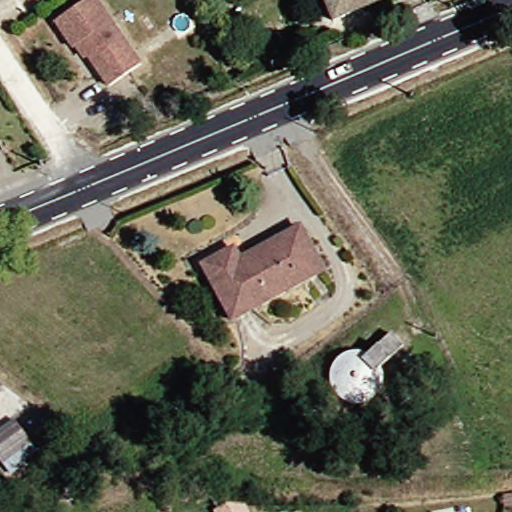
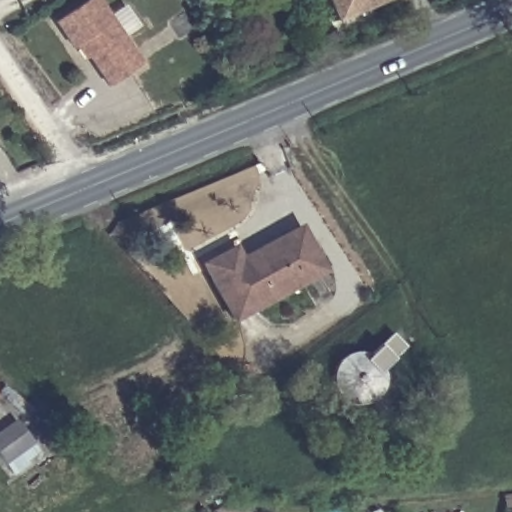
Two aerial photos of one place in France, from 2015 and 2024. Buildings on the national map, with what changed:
unchanged [(98,0),(145,68),(112,90),(83,47),(77,52),(58,24),(95,0),(98,0)]
unchanged [(316,0),(394,0),(328,28),(316,0)]
unchanged [(316,272),(225,314),(199,258),(229,245),(234,257),(277,240),(296,231),(316,272)]
unchanged [(30,449),(0,468),(0,440),(18,429),(30,449)]

